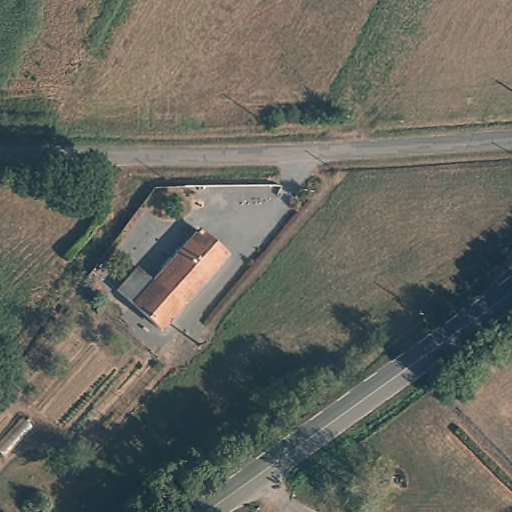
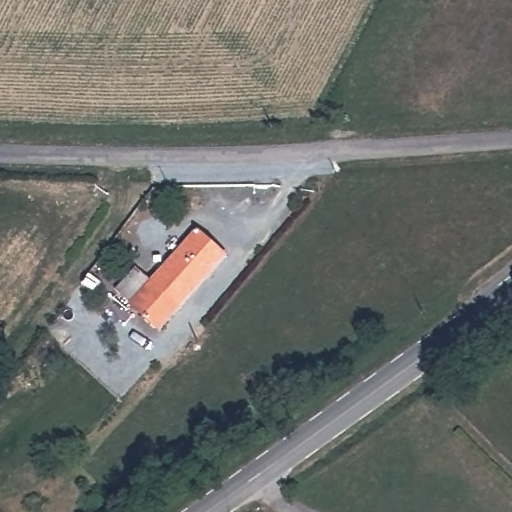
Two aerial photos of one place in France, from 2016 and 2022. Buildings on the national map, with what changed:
unchanged [(116,290),(137,267),(152,281),(197,230),(226,256),(160,330),(116,290)]

